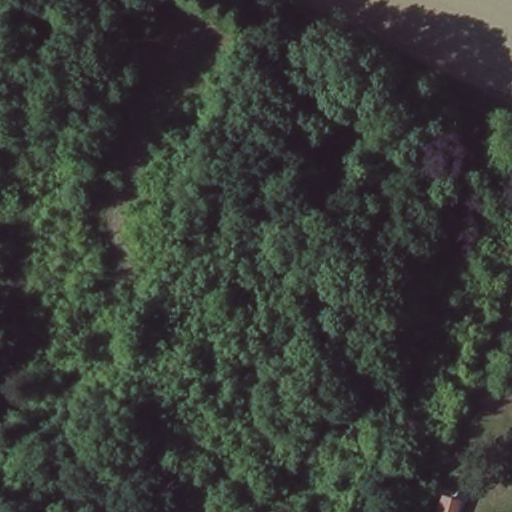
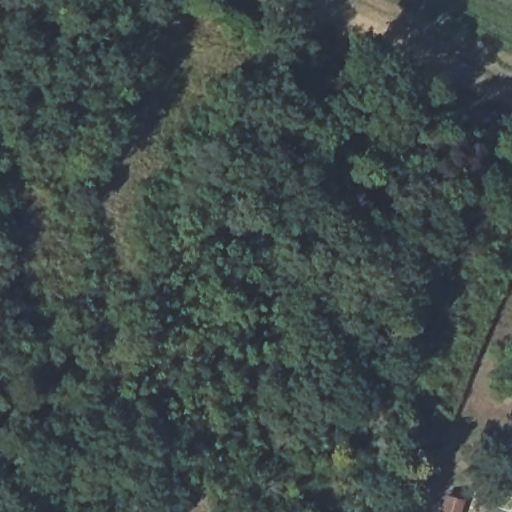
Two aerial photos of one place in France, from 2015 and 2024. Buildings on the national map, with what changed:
unchanged [(489,151),(493,141),(504,146),(500,156),(489,151)]
unchanged [(159,499),(138,482),(150,467),(171,483),(159,499)]
unchanged [(466,498),(461,512),(435,512),(442,491),(466,498)]

